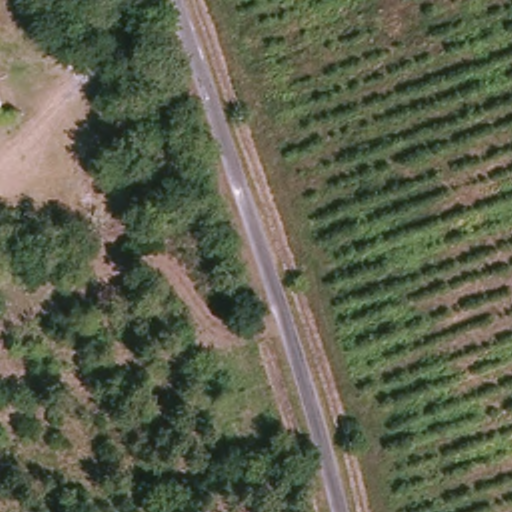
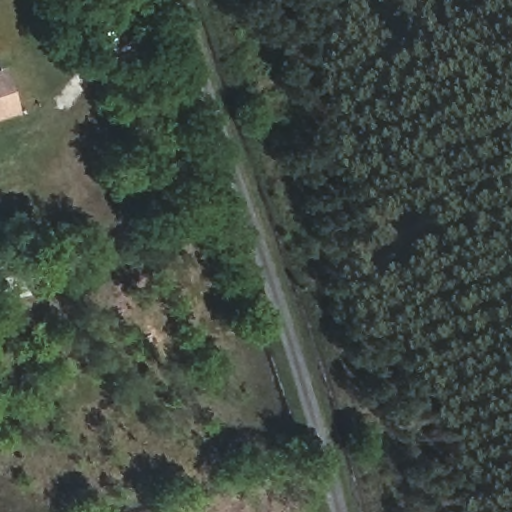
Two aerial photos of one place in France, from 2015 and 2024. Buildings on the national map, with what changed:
new [(0,118),(0,67),(5,65),(20,111),(0,118)]

